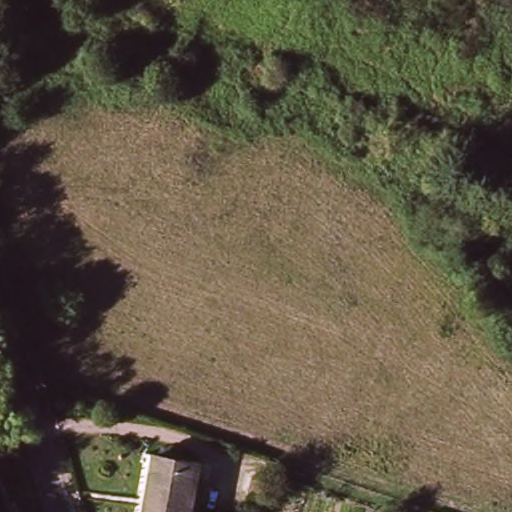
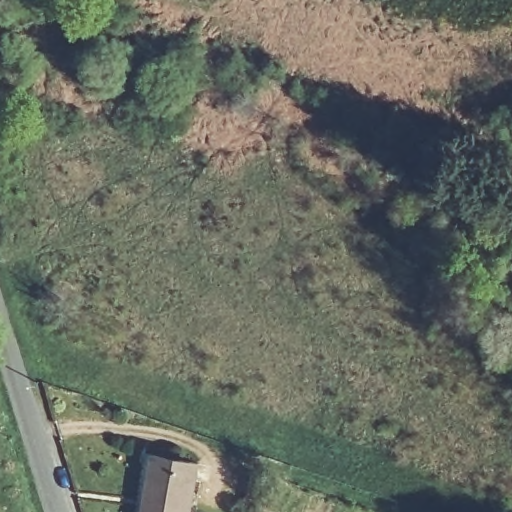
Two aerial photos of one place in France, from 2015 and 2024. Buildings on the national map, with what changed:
unchanged [(172,452),(214,464),(204,512),(143,512),(159,449),(172,452)]

